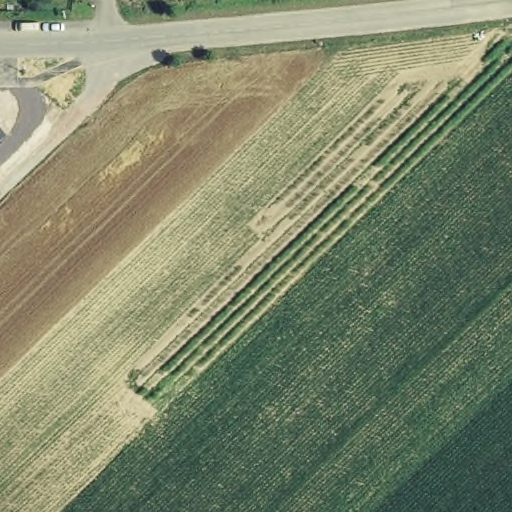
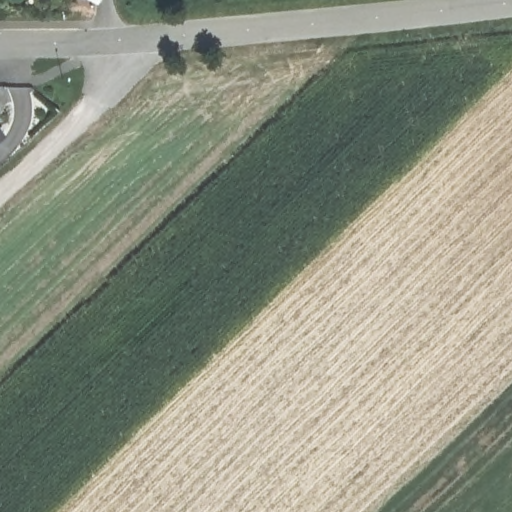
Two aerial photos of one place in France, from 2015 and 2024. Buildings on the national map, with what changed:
unchanged [(0,133),(3,138),(0,141),(0,133)]

